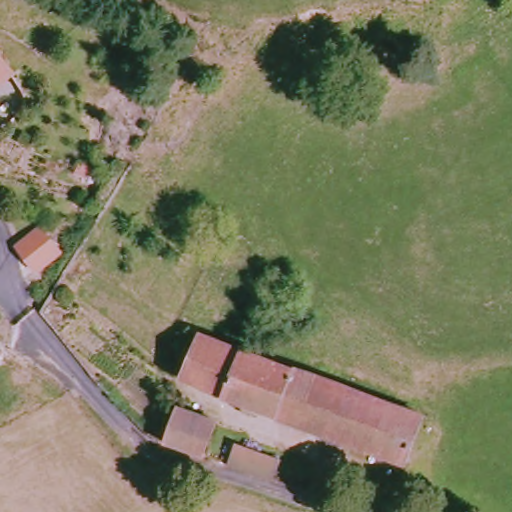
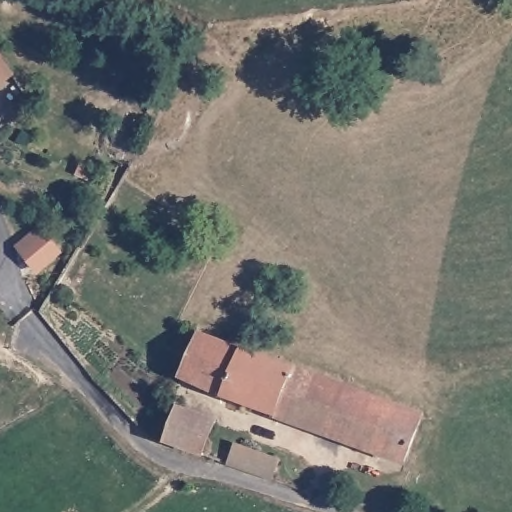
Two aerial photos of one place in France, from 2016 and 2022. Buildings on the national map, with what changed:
unchanged [(4,89),(0,84),(0,48),(21,74),(4,89)]
unchanged [(44,227),(62,251),(38,268),(21,244),(44,227)]
unchanged [(350,387),(334,433),(193,384),(185,380),(203,338),(350,387)]
unchanged [(416,462),(334,433),(350,387),(431,415),(416,462)]
unchanged [(184,405),(223,421),(213,457),(170,445),(184,405)]
unchanged [(250,441),(292,457),(285,482),(240,467),(250,441)]

